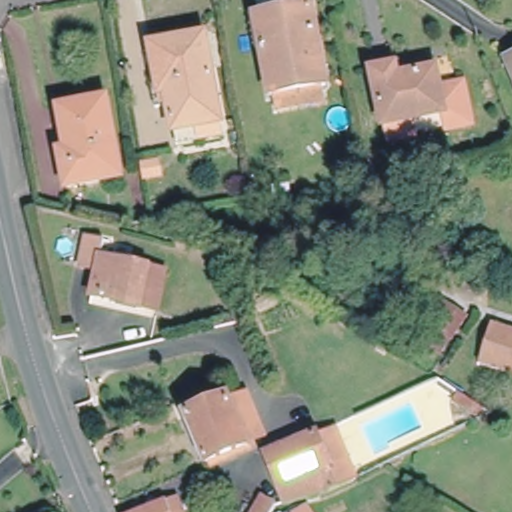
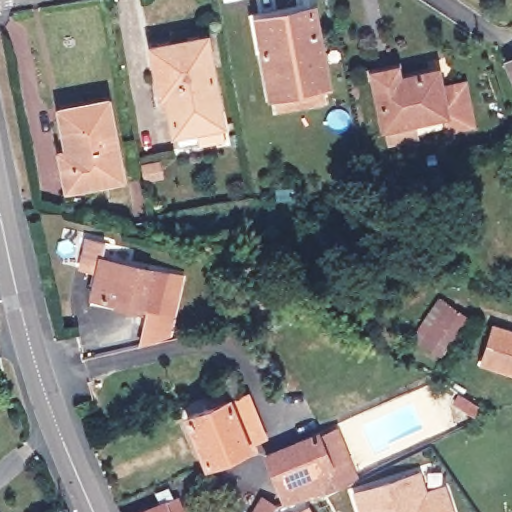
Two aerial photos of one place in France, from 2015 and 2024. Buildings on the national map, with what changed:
unchanged [(327,85),(273,96),(258,20),(312,9),(327,85)]
unchanged [(176,133),(169,95),(163,96),(154,48),(205,38),(222,124),(176,133)]
unchanged [(512,59),(512,91),(501,64),(512,59)]
unchanged [(407,126),(410,142),(386,147),(383,131),(380,132),(369,79),(392,74),(394,85),(432,77),(436,95),(459,90),(467,131),(445,136),(441,119),(407,126)]
unchanged [(68,187),(63,154),(70,153),(62,110),(107,102),(121,178),(68,187)]
unchanged [(135,222),(123,223),(121,210),(134,209),(135,222)]
unchanged [(102,301),(104,291),(109,275),(91,271),(98,243),(116,247),(112,264),(158,274),(149,311),(102,301)]
unchanged [(457,323),(433,359),(407,341),(431,306),(457,323)]
unchanged [(490,333),(512,340),(512,378),(480,368),(490,333)]
unchanged [(458,405),(464,394),(482,406),(475,417),(458,405)]
unchanged [(224,402),(240,395),(257,436),(240,443),(243,448),(202,464),(182,413),(222,397),(224,402)]
unchanged [(338,431),(349,459),(357,480),(324,495),(308,499),(287,504),(268,455),(319,435),(320,438),(338,431)]
new [(353,490),(421,470),(426,488),(445,482),(454,512),(360,512),(353,490)]
unchanged [(274,512),(254,512),(263,497),(278,506),(274,512)]
unchanged [(165,504),(166,506),(177,501),(181,512),(146,512),(165,504)]

